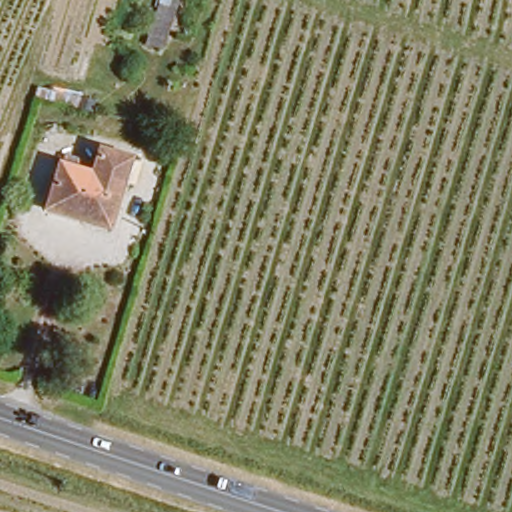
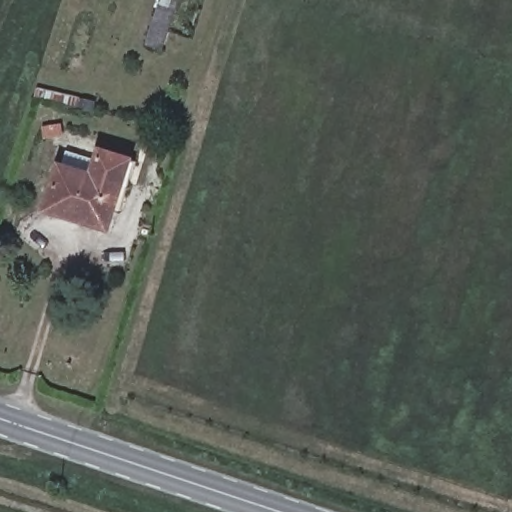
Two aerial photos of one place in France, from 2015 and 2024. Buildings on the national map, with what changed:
unchanged [(161,5),(173,10),(162,46),(147,40),(161,5)]
unchanged [(75,220),(41,208),(55,165),(85,174),(95,149),(118,156),(132,161),(123,187),(116,185),(103,219),(101,229),(75,220)]

